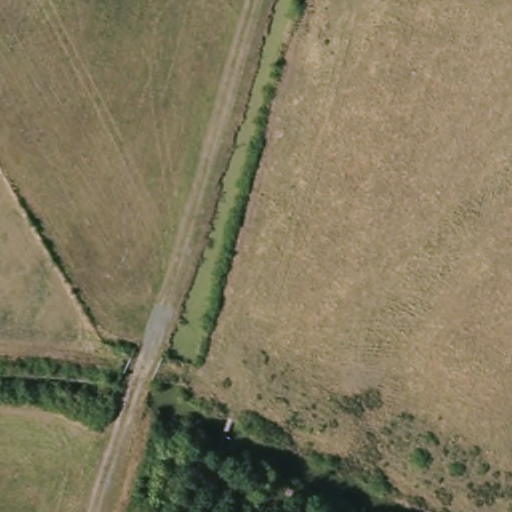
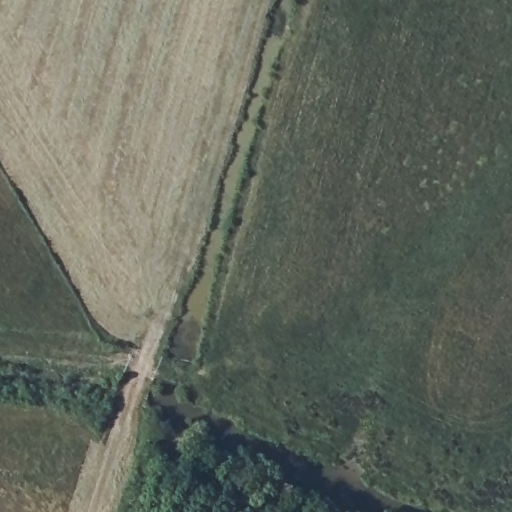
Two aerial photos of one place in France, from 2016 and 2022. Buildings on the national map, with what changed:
[]

